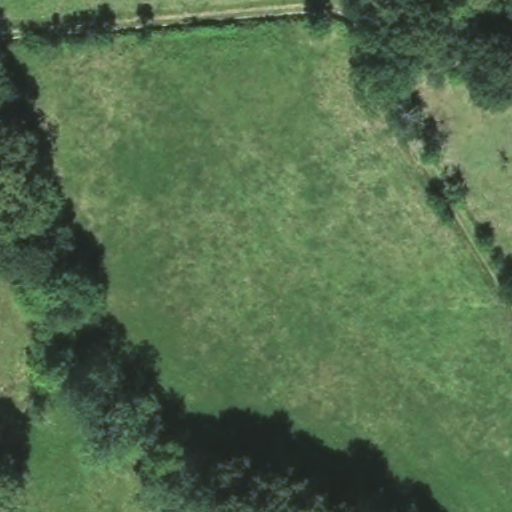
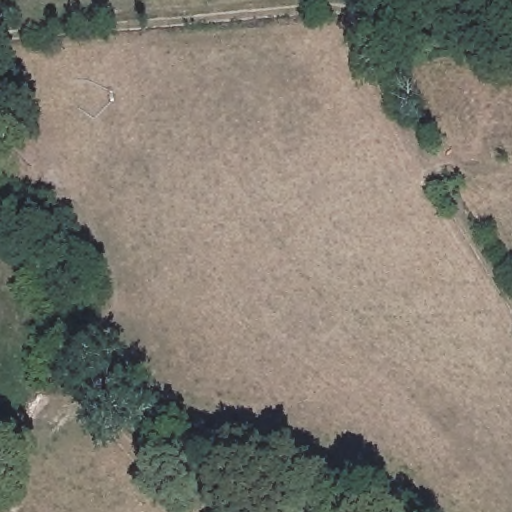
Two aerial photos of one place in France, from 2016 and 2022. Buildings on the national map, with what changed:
[]

